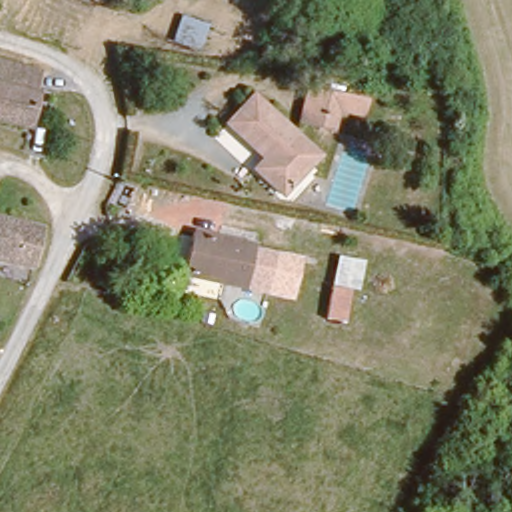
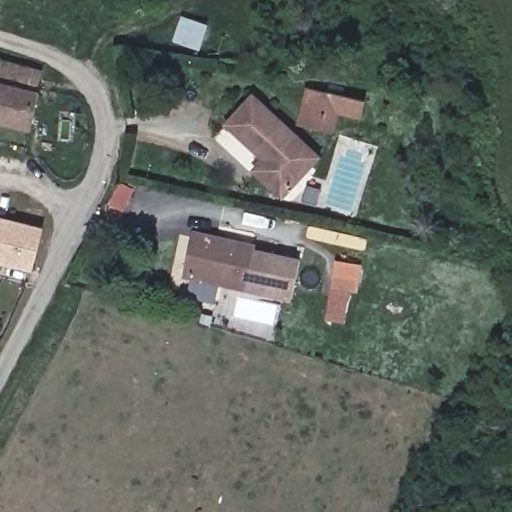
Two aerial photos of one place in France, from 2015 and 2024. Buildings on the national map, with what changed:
unchanged [(32,9),(58,11),(56,29),(30,24),(32,9)]
unchanged [(0,122),(0,62),(34,70),(24,129),(0,122)]
unchanged [(301,85),(363,97),(359,118),(335,116),(331,131),(294,125),(301,85)]
unchanged [(243,95),(316,150),(285,192),(253,169),(261,156),(219,126),(243,95)]
unchanged [(0,258),(0,214),(39,224),(30,266),(0,258)]
unchanged [(180,265),(188,230),(252,243),(251,249),(249,255),(242,286),(216,281),(178,274),(180,265)]
unchanged [(242,286),(249,255),(251,249),(301,258),(293,301),(240,290),(242,286)]
unchanged [(356,292),(348,290),(342,323),(322,319),(334,256),(362,262),(356,292)]

